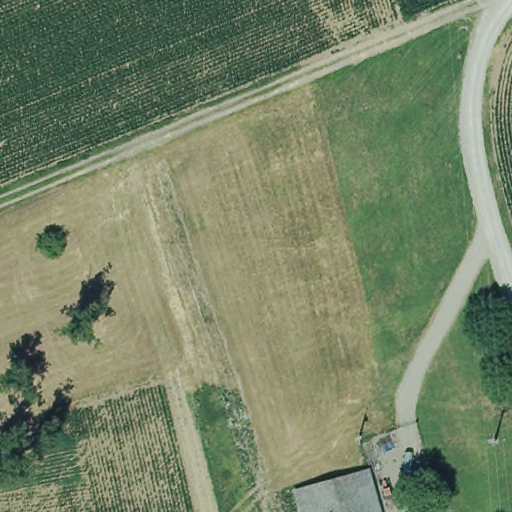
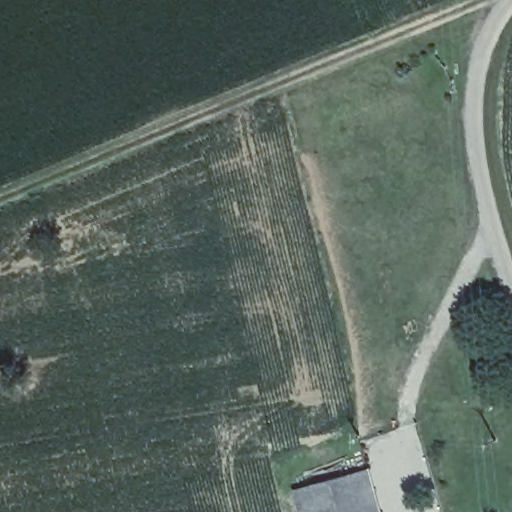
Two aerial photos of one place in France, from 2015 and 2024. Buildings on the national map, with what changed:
unchanged [(391,512),(312,512),(305,488),(379,465),(385,490),(391,512)]

